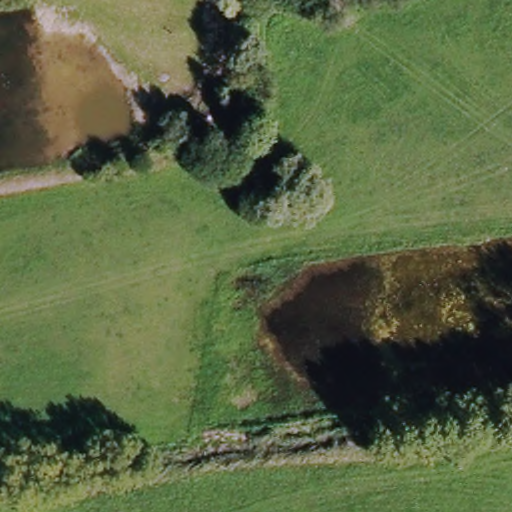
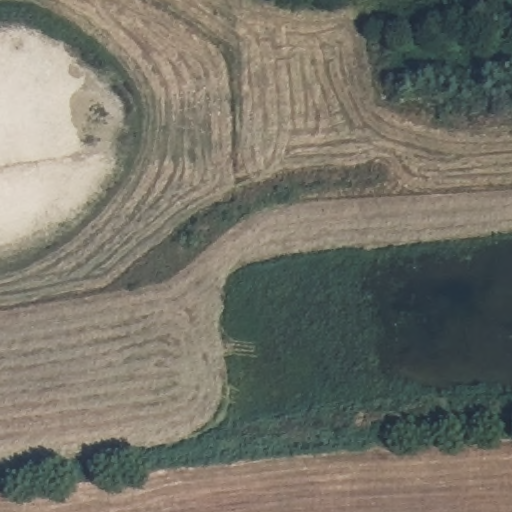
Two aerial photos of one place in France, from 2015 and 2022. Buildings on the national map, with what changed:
[]

